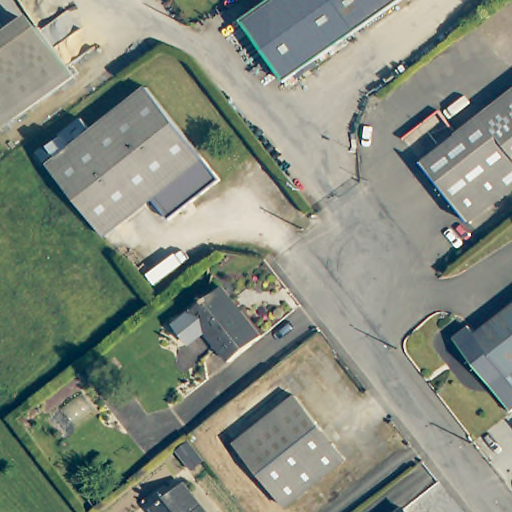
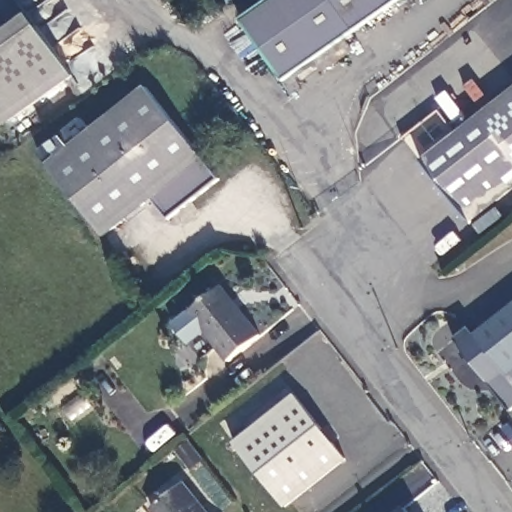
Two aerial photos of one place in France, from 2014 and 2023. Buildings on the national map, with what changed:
unchanged [(289,78),(243,17),(267,0),(396,0),(289,78)]
unchanged [(0,116),(0,44),(33,20),(67,67),(0,116)]
unchanged [(221,174),(169,214),(150,191),(103,228),(48,160),(148,83),(221,174)]
unchanged [(473,220),(427,158),(512,91),(512,190),(473,220)]
unchanged [(193,303),(225,276),(265,324),(234,351),(223,337),(207,350),(178,316),(193,303)]
unchanged [(462,326),(469,335),(512,302),(512,404),(507,408),(450,335),(462,326)]
unchanged [(347,455),(285,504),(234,438),(295,390),(347,455)]
unchanged [(157,512),(153,506),(185,483),(208,512),(157,512)]
unchanged [(394,512),(404,503),(411,512),(394,512)]

